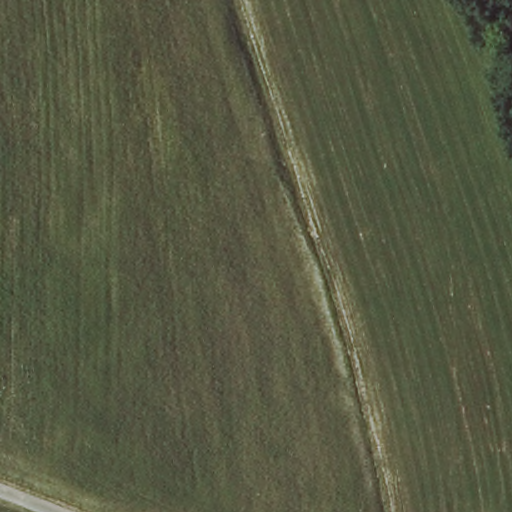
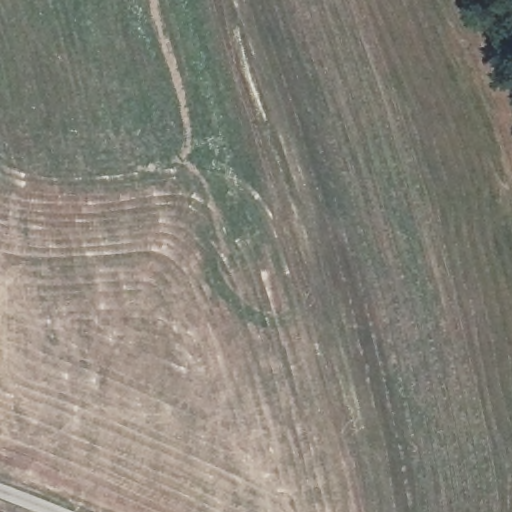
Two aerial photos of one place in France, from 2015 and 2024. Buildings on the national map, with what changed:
[]

